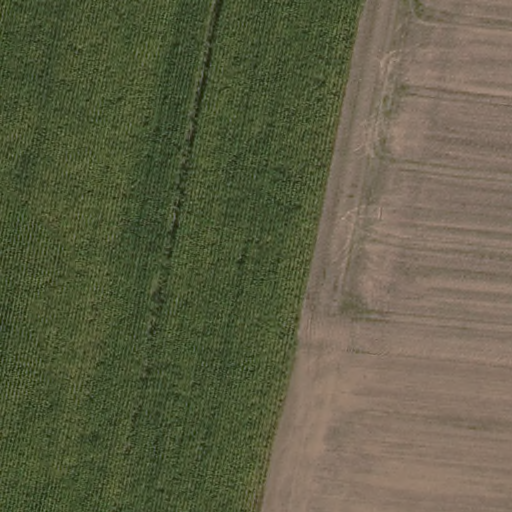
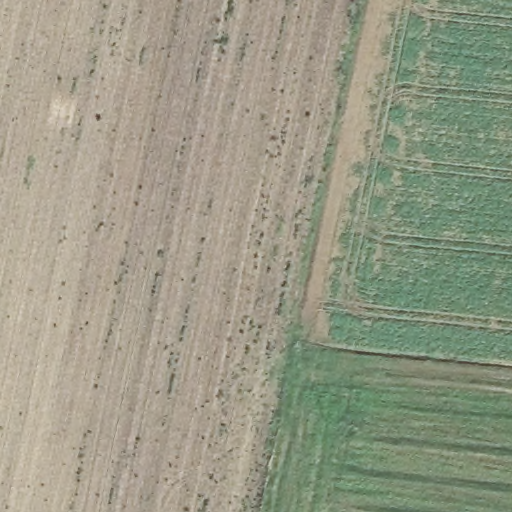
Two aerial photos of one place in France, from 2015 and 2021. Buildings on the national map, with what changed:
[]

